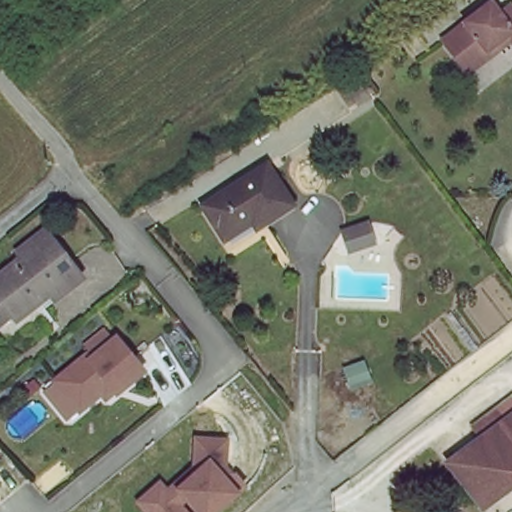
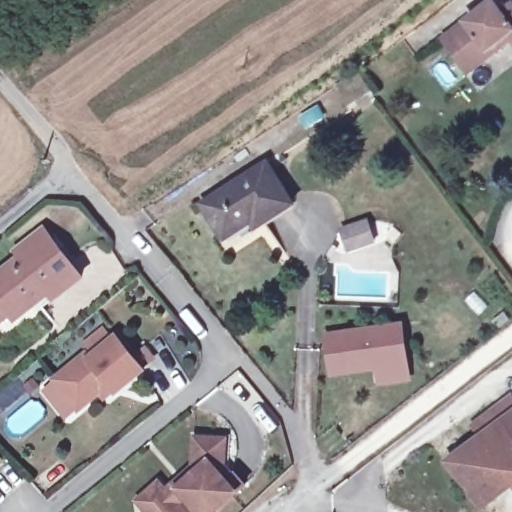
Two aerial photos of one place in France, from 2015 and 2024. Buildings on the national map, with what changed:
unchanged [(469,21),(489,4),(498,15),(508,6),(512,11),(512,43),(506,36),(490,48),(463,69),(442,42),(469,21)]
unchanged [(289,205),(255,226),(248,215),(220,234),(200,201),(264,163),(289,205)]
unchanged [(364,220),(371,243),(344,251),(338,228),(364,220)]
unchanged [(15,253),(44,229),(85,278),(57,301),(47,292),(15,318),(0,331),(0,277),(21,260),(15,253)]
new [(411,317),(414,369),(356,375),(355,365),(327,367),(323,323),(411,317)]
unchanged [(59,402),(44,384),(75,358),(79,362),(105,341),(133,374),(106,396),(99,389),(76,408),(69,414),(59,402)]
unchanged [(483,442),(469,427),(501,401),(512,414),(512,476),(509,473),(483,442)]
unchanged [(162,491),(171,484),(174,488),(193,471),(190,467),(192,438),(221,441),(219,467),(238,488),(211,512),(194,512),(181,498),(173,504),(181,512),(139,512),(132,503),(139,497),(155,483),(162,491)]
unchanged [(476,499),(449,469),(483,442),(509,473),(476,499)]

